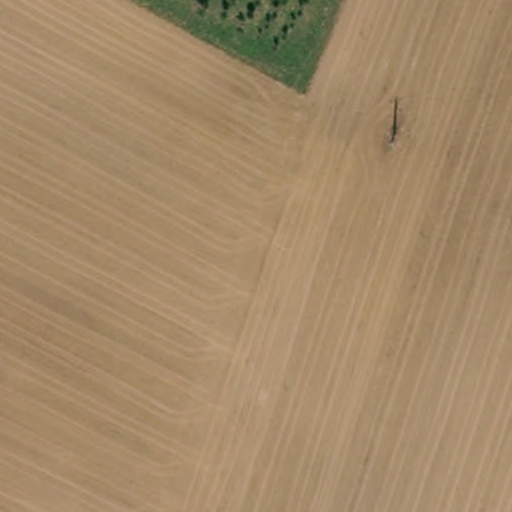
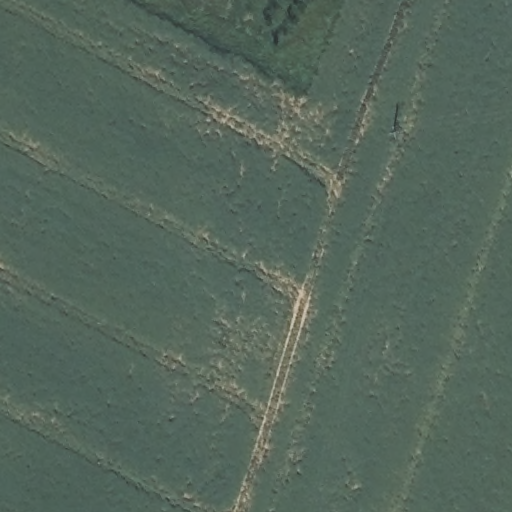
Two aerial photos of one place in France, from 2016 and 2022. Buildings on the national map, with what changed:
[]

